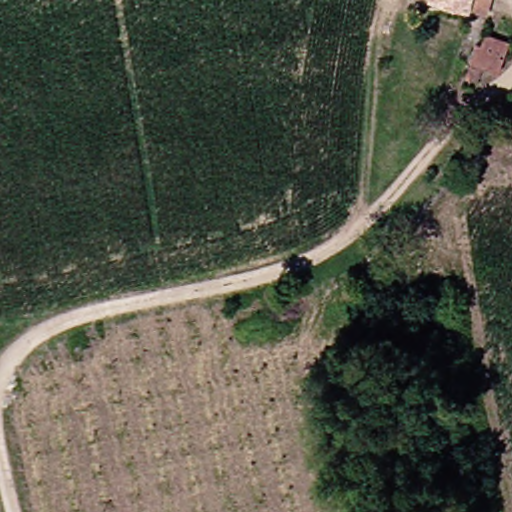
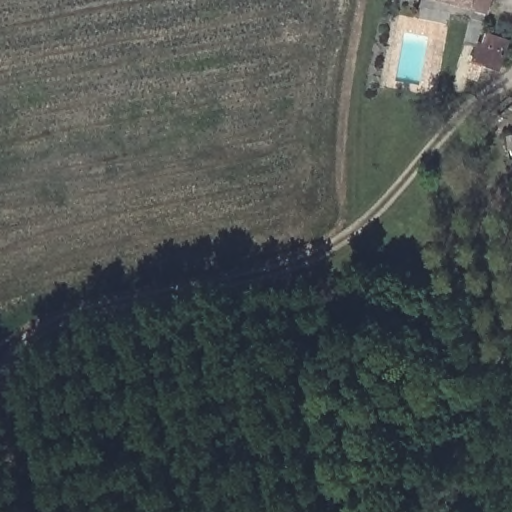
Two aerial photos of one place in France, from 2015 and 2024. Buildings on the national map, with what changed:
unchanged [(424,0),(489,0),(488,12),(424,0)]
unchanged [(493,72),(489,82),(476,76),(492,48),(512,54),(512,59),(503,75),(493,72)]

